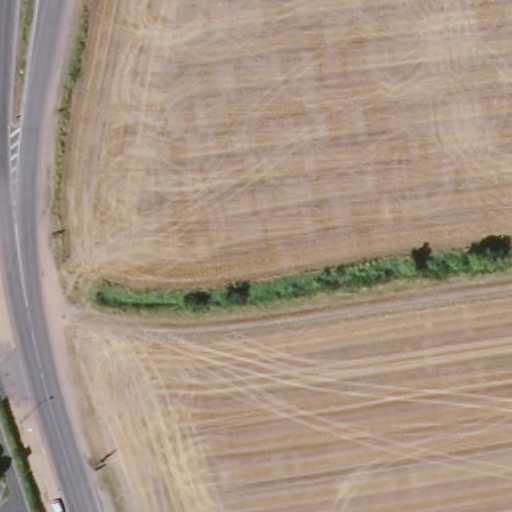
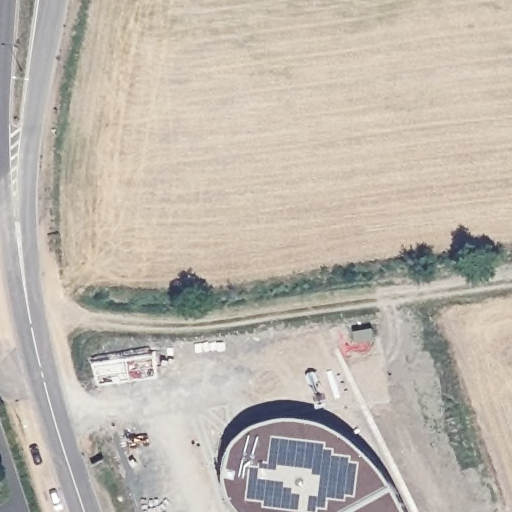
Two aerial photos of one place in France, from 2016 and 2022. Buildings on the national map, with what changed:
new [(235,507),(229,492),(227,477),(227,465),(228,457),(231,450),(240,435),(250,430),(266,423),(287,420),(308,420),(332,426),(356,442),(377,461),(387,475),(401,495),(409,512),(240,512),(235,507)]

